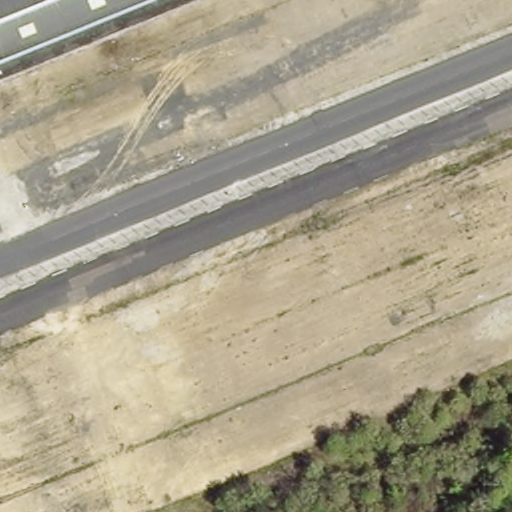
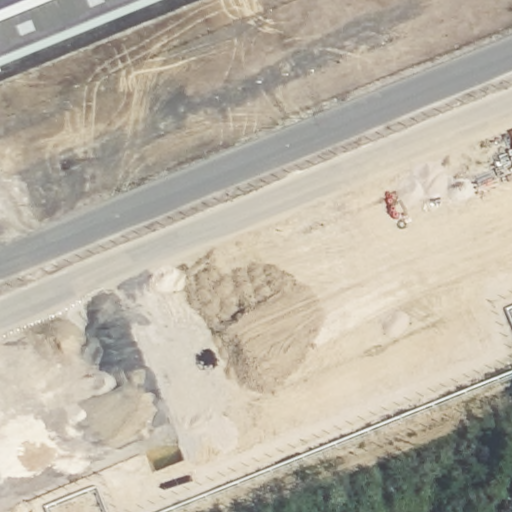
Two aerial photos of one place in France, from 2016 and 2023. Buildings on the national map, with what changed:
unchanged [(0,0),(156,0),(0,64),(0,0)]

